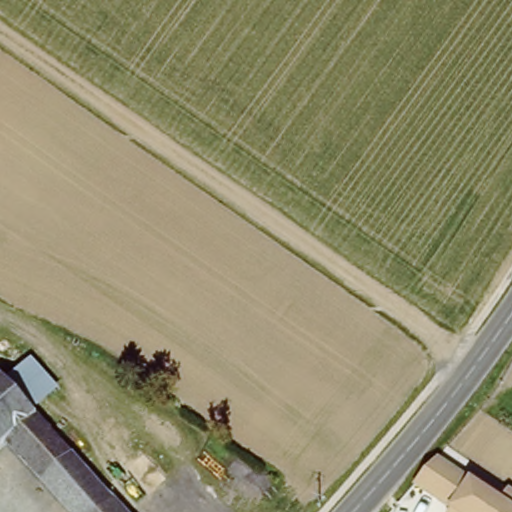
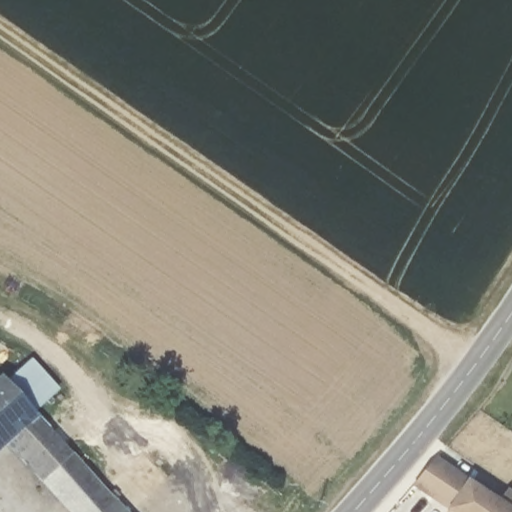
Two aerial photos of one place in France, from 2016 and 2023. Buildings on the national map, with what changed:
unchanged [(12,377),(46,415),(12,445),(0,456),(0,388),(12,377)]
unchanged [(50,487),(12,445),(46,415),(84,456),(50,487)]
unchanged [(501,500),(510,485),(512,487),(512,512),(450,512),(451,511),(413,484),(437,455),(472,479),(501,500)]
unchanged [(84,456),(135,512),(72,512),(50,487),(84,456)]

